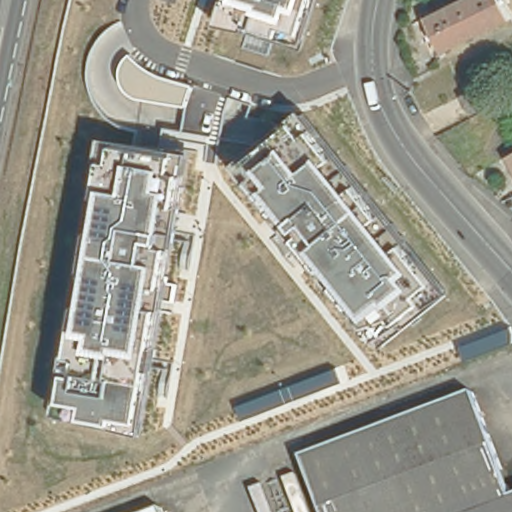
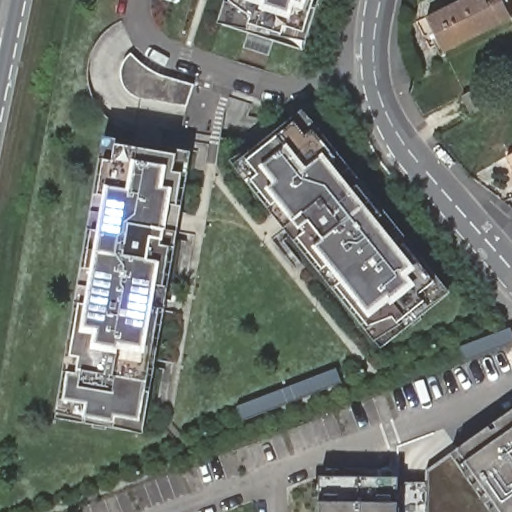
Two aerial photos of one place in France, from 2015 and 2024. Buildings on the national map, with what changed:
unchanged [(306,49),(222,24),(230,0),(322,0),(306,49)]
unchanged [(460,0),(504,0),(512,17),(445,50),(428,16),(460,0)]
unchanged [(186,107),(146,100),(132,97),(124,86),(120,72),(124,60),(131,55),(139,63),(146,68),(155,73),(193,84),(186,107)]
unchanged [(480,87),(490,104),(470,115),(461,98),(480,87)]
unchanged [(447,293),(382,346),(234,165),(304,109),(447,293)]
unchanged [(145,429),(56,416),(105,135),(192,150),(145,429)]
unchanged [(512,166),(505,155),(512,151),(512,166)]
new [(241,421),(235,407),(335,369),(340,382),(241,421)]
demolished [(471,389),(510,493),(512,493),(512,512),(324,512),(302,452),(471,389)]
new [(425,471),(512,407),(512,512),(427,512),(425,508),(425,471)]
new [(321,476),(398,477),(397,502),(321,500),(321,476)]
new [(397,502),(397,512),(321,512),(321,500),(397,502)]
demolished [(154,512),(160,509),(161,512),(154,512)]

